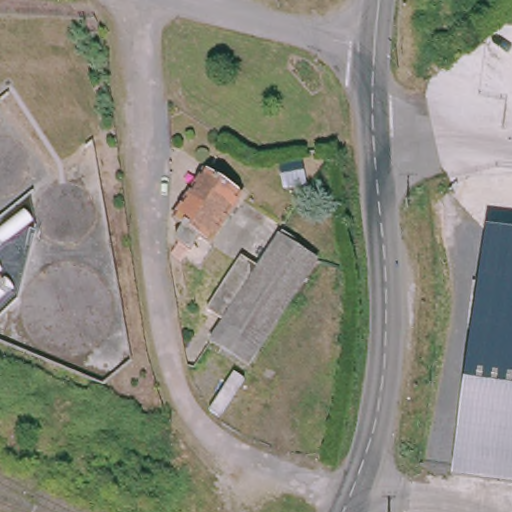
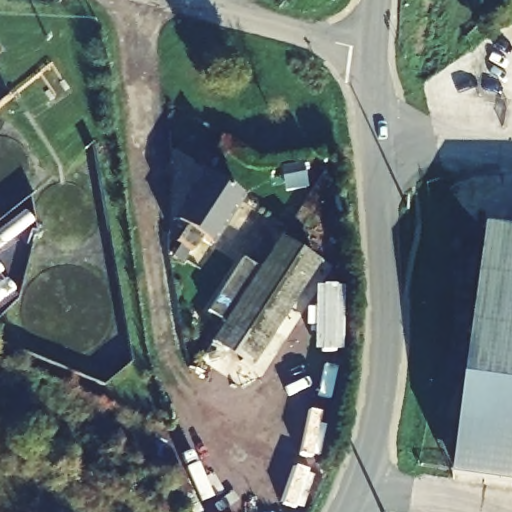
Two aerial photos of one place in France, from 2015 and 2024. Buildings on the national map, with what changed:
unchanged [(176,256),(183,244),(179,242),(188,227),(178,222),(209,172),(248,196),(216,246),(204,238),(196,252),(192,250),(185,262),(176,256)]
unchanged [(284,239),(225,324),(206,311),(263,226),(284,239)]
unchanged [(454,480),(485,226),(512,230),(512,488),(454,480)]
unchanged [(321,263),(248,368),(211,344),(225,324),(284,239),(321,263)]

